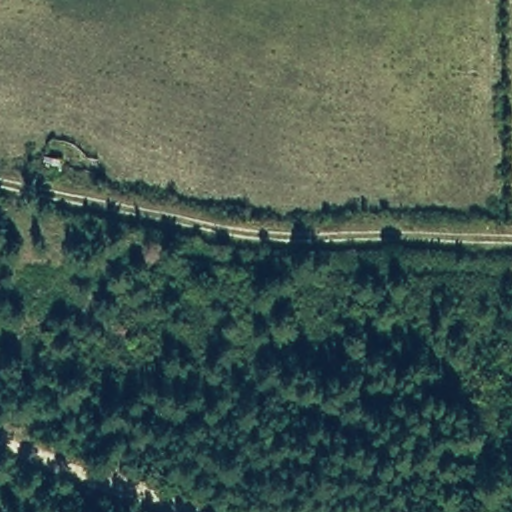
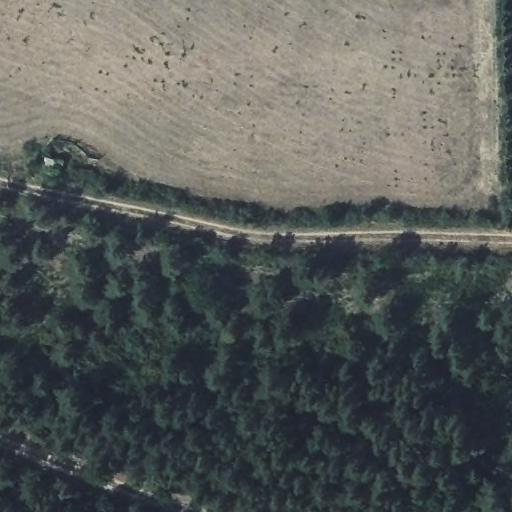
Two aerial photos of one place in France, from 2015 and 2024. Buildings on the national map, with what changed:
unchanged [(62,160),(59,178),(42,176),(45,156),(62,160)]

